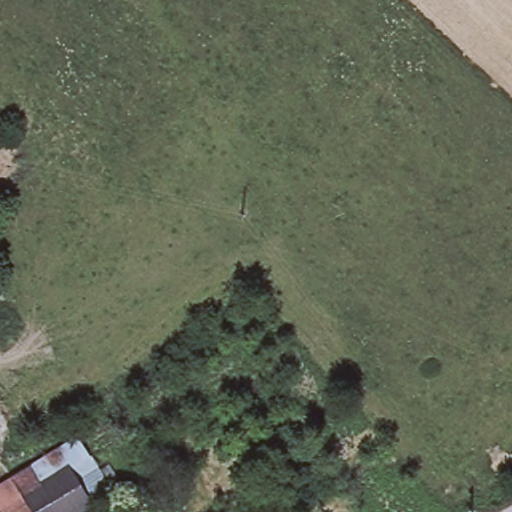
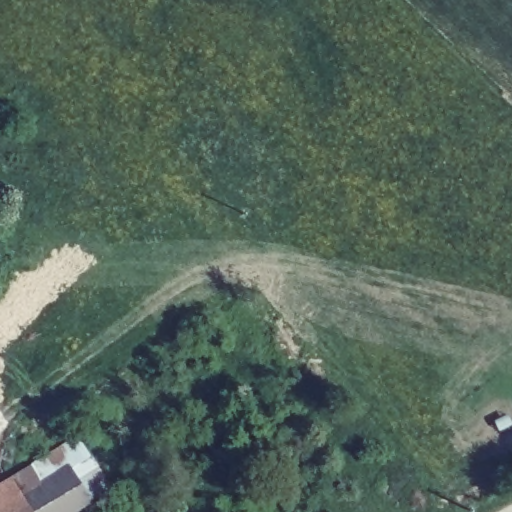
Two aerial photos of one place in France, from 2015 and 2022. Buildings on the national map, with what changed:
unchanged [(108,490),(73,512),(31,512),(11,480),(77,439),(108,490)]
unchanged [(0,512),(0,487),(11,480),(31,512),(0,512)]

